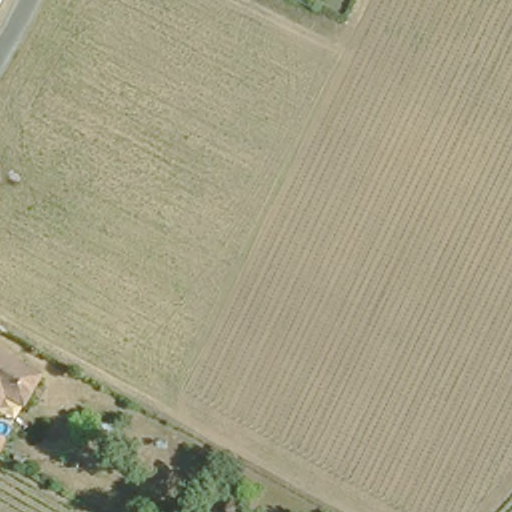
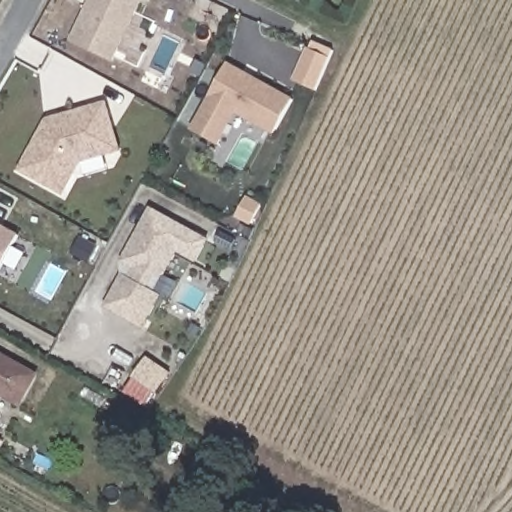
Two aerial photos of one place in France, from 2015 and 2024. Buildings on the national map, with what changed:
new [(142,0),(113,60),(72,40),(92,0),(142,0)]
new [(306,49),(326,58),(312,91),(291,81),(306,49)]
new [(273,134),(235,114),(217,145),(190,130),(227,64),(293,98),(273,134)]
new [(64,115),(107,102),(115,129),(120,150),(106,154),(81,161),(64,193),(20,170),(48,120),(64,115)]
new [(144,328),(104,306),(122,274),(129,277),(133,269),(120,261),(150,207),(210,240),(197,263),(178,252),(166,275),(155,277),(150,288),(162,295),(144,328)]
new [(0,225),(19,235),(0,270),(0,225)]
unchanged [(14,348),(42,365),(26,392),(9,382),(7,384),(0,380),(0,340),(6,344),(14,348)]
new [(146,360),(169,373),(156,392),(134,377),(146,360)]
unchanged [(0,380),(7,384),(0,396),(0,380)]
unchanged [(0,437),(0,424),(5,427),(0,437)]

